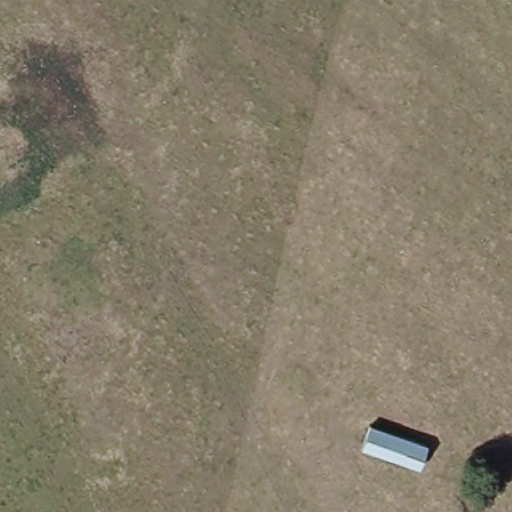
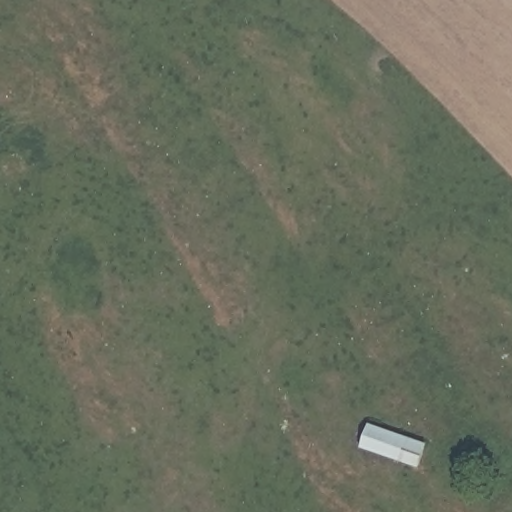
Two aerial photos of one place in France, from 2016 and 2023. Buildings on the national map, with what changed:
unchanged [(360,453),(367,423),(426,440),(418,470),(360,453)]

